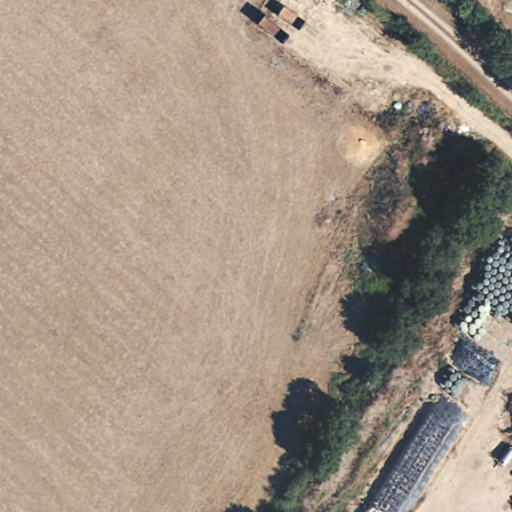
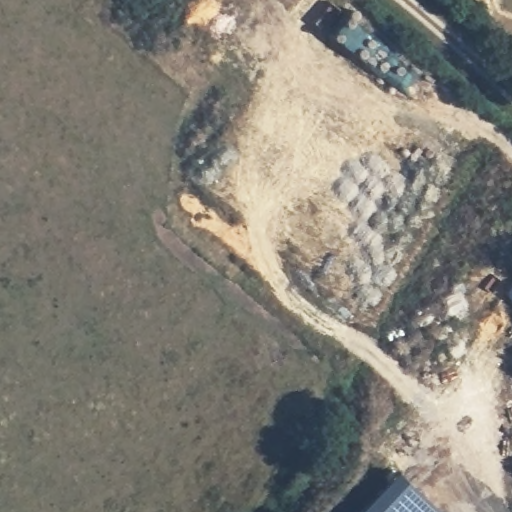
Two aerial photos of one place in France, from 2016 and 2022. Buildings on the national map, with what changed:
new [(443,512),(361,512),(399,472),(443,512)]

